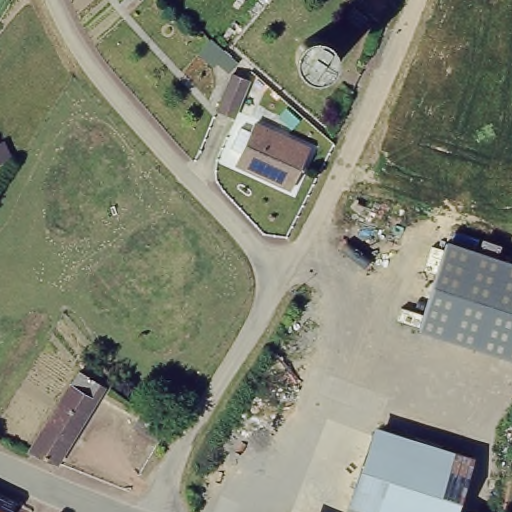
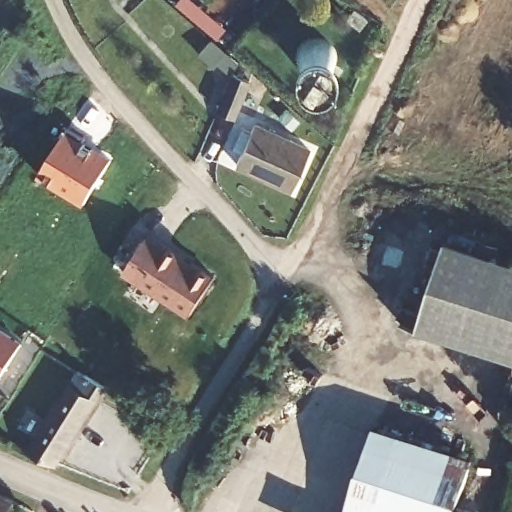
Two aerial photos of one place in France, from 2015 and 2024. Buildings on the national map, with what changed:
unchanged [(362,5),(374,15),(367,24),(354,14),(362,5)]
unchanged [(204,58),(195,49),(208,31),(224,45),(235,55),(228,68),(208,52),(204,58)]
unchanged [(230,110),(213,103),(228,68),(244,75),(230,110)]
unchanged [(282,102),(297,114),(287,124),(274,113),(282,102)]
unchanged [(240,126),(252,131),(256,121),(315,149),(297,189),(239,162),(245,150),(232,145),(240,126)]
new [(37,177),(66,130),(70,126),(85,135),(82,139),(112,158),(84,205),(37,177)]
new [(150,232),(217,274),(190,315),(125,273),(150,232)]
unchanged [(425,333),(452,247),(512,265),(512,360),(425,333)]
new [(0,379),(0,328),(22,342),(0,379)]
unchanged [(110,369),(49,472),(23,461),(87,356),(110,369)]
unchanged [(174,422),(160,447),(124,427),(138,401),(174,422)]
unchanged [(473,460),(457,512),(348,512),(376,428),(473,460)]
unchanged [(8,512),(0,512),(0,499),(12,504),(8,512)]
new [(471,512),(457,512),(459,509),(471,512)]

